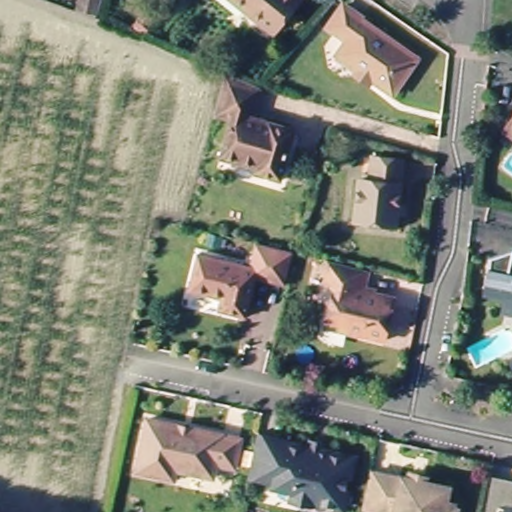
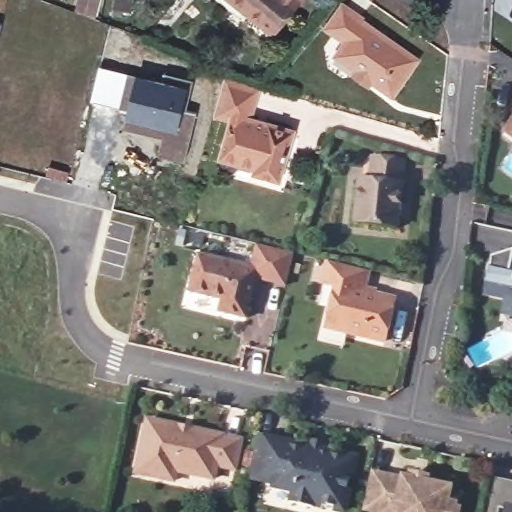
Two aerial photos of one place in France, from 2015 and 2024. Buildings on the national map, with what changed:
new [(76,0),(102,0),(97,17),(74,9),(76,0)]
unchanged [(276,36),(224,0),(302,0),(276,36)]
unchanged [(357,76),(361,71),(344,58),(352,47),(339,36),(357,13),(425,68),(398,101),(374,82),(369,87),(357,76)]
new [(4,20),(0,36),(0,19),(4,20)]
new [(99,64),(130,72),(122,108),(91,100),(99,64)]
new [(130,72),(162,79),(164,72),(193,79),(186,107),(180,130),(166,128),(134,122),(132,126),(126,125),(129,110),(122,108),(130,72)]
unchanged [(261,88),(250,123),(296,138),(280,189),(256,181),(259,172),(221,160),(232,124),(214,118),(229,73),(261,88)]
new [(166,128),(180,130),(186,107),(200,111),(187,160),(159,153),(166,128)]
unchanged [(512,121),(512,132),(507,128),(512,121)]
unchanged [(414,172),(396,238),(355,226),(366,189),(372,191),(380,163),(414,172)]
unchanged [(286,284),(257,277),(247,319),(219,312),(223,299),(191,291),(200,254),(253,268),(258,245),(294,254),(286,284)]
unchanged [(504,303),(490,299),(494,280),(488,279),(492,264),(512,256),(512,322),(501,319),(504,303)]
unchanged [(368,274),(362,296),(397,305),(388,340),(325,324),(334,289),(321,286),(327,264),(368,274)]
unchanged [(512,368),(506,363),(512,361),(512,368)]
unchanged [(237,439),(230,469),(211,465),(208,479),(171,471),(170,478),(134,470),(145,418),(237,439)]
unchanged [(262,434),(318,447),(320,441),(337,445),(336,452),(359,457),(347,511),(323,505),(322,509),(298,503),(301,492),(283,488),(286,475),(254,468),(262,435),(262,434)]
unchanged [(362,506),(370,472),(402,480),(403,476),(409,478),(411,472),(432,477),(431,483),(457,489),(453,504),(456,505),(454,512),(383,512),(383,511),(362,506)]
unchanged [(512,512),(485,512),(488,499),(493,479),(512,484),(512,512)]

